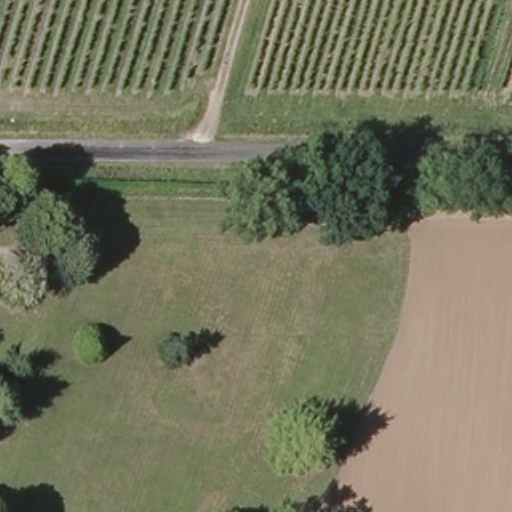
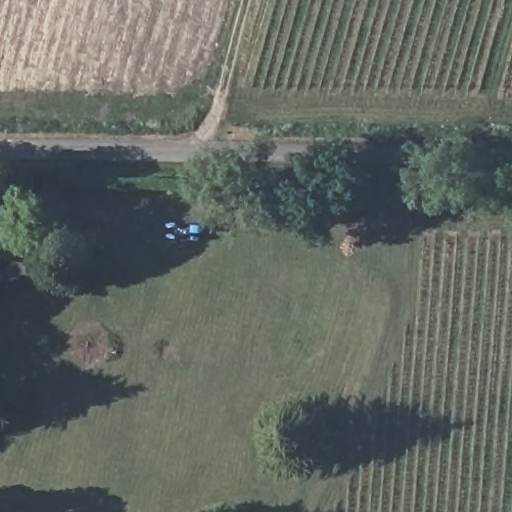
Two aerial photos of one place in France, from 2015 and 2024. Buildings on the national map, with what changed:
unchanged [(8,257),(31,259),(30,271),(19,270),(19,275),(7,275),(8,257)]

